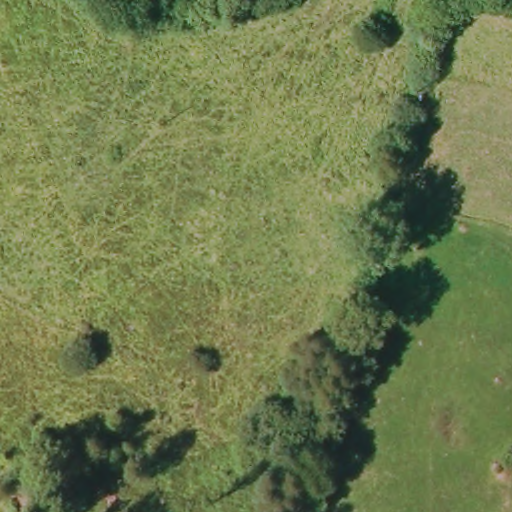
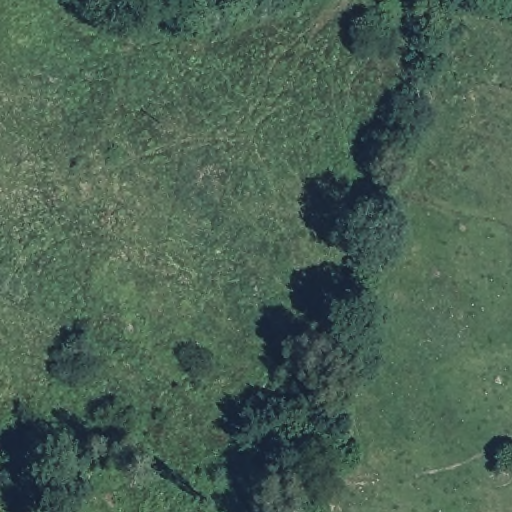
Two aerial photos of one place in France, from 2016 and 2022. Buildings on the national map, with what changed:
[]

